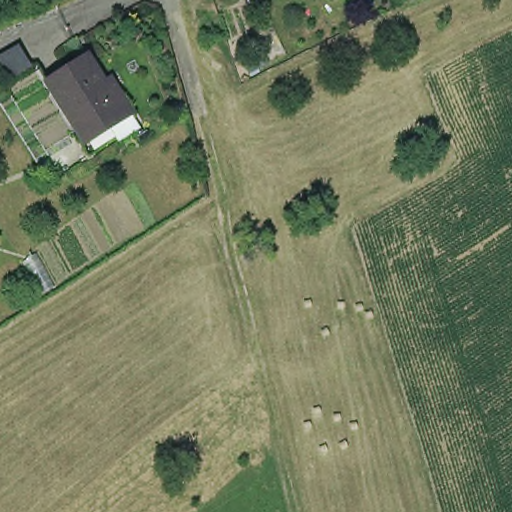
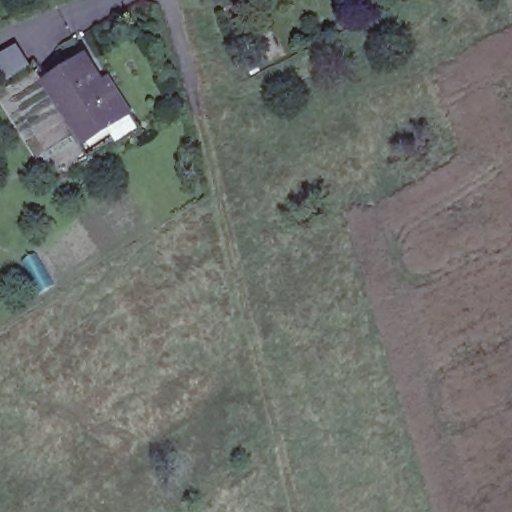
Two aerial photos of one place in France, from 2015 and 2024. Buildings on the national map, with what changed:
unchanged [(36,71),(5,87),(0,76),(0,57),(21,46),(36,71)]
unchanged [(86,144),(50,86),(85,65),(102,94),(112,88),(130,116),(86,144)]

